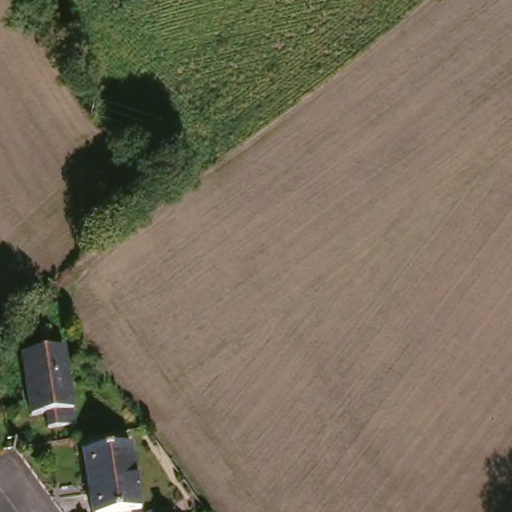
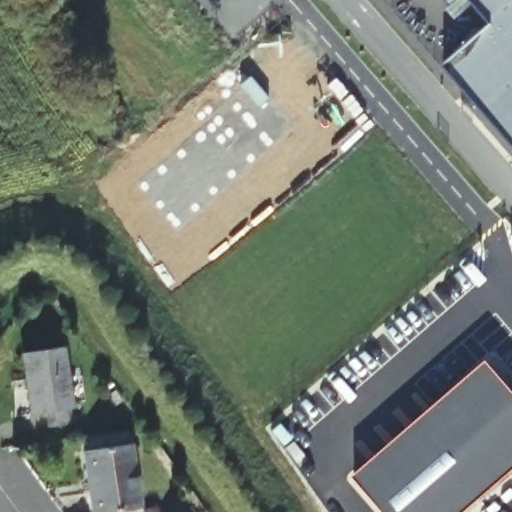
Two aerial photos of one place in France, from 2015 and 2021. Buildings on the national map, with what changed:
new [(512,0),(512,145),(444,68),(493,26),(471,0),(512,0)]
unchanged [(42,429),(39,414),(26,417),(16,354),(58,348),(69,424),(42,429)]
new [(512,393),(512,468),(460,512),(379,512),(348,475),(483,359),(512,393)]
unchanged [(119,512),(92,512),(83,453),(131,446),(141,509),(119,512)]

